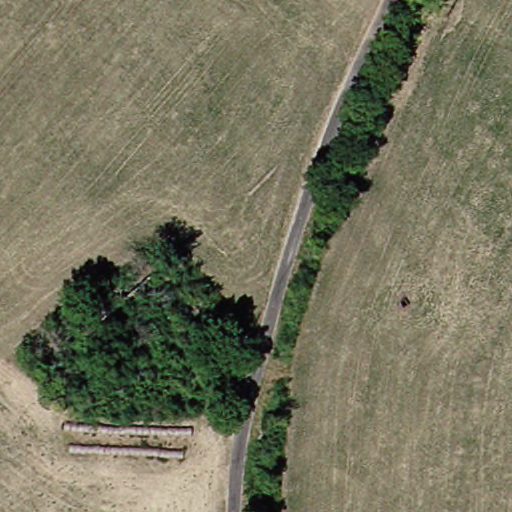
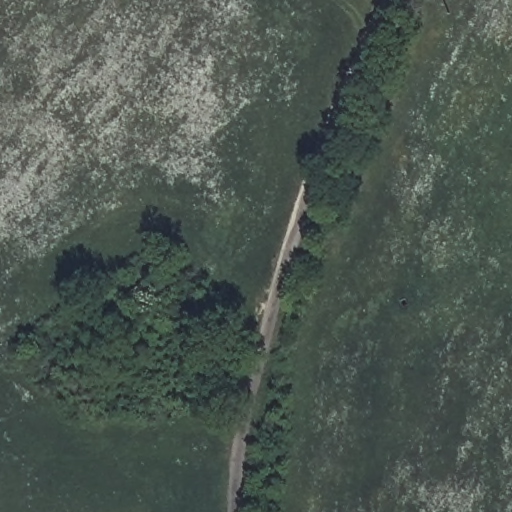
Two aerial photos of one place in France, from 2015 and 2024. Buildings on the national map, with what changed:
unchanged [(215,319),(190,337),(170,315),(115,361),(93,339),(172,271),(215,319)]

